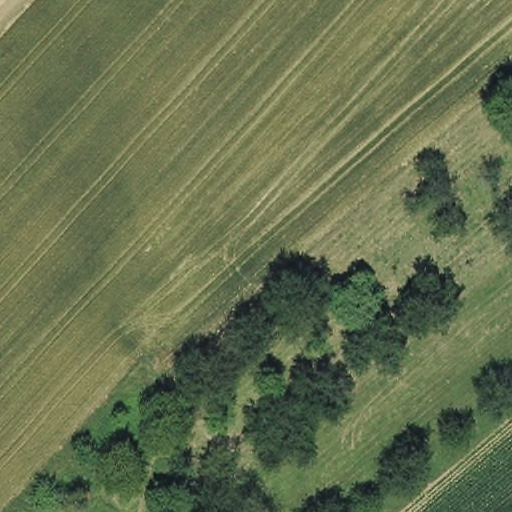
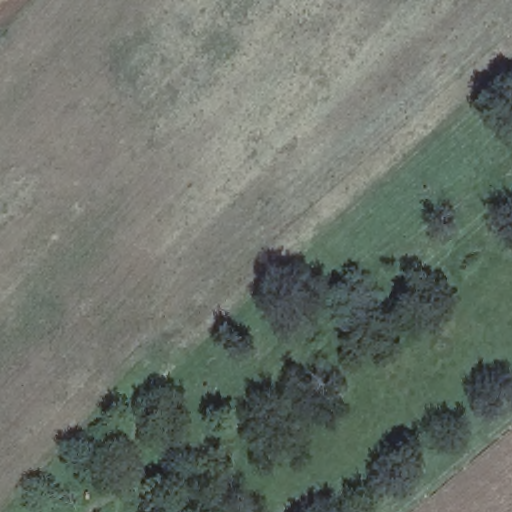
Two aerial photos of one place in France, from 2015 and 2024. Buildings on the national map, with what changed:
unchanged [(222,501),(237,512),(163,512),(187,497),(222,501)]

